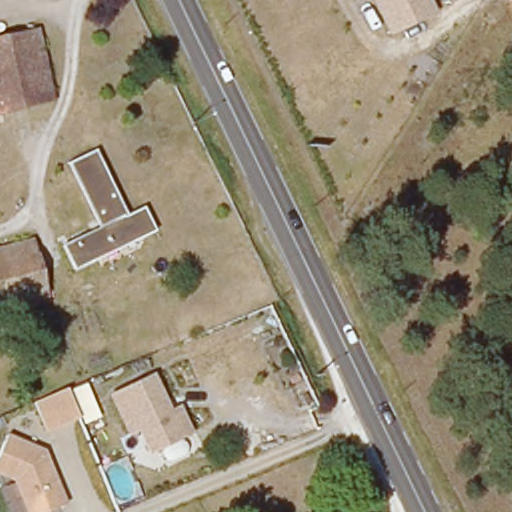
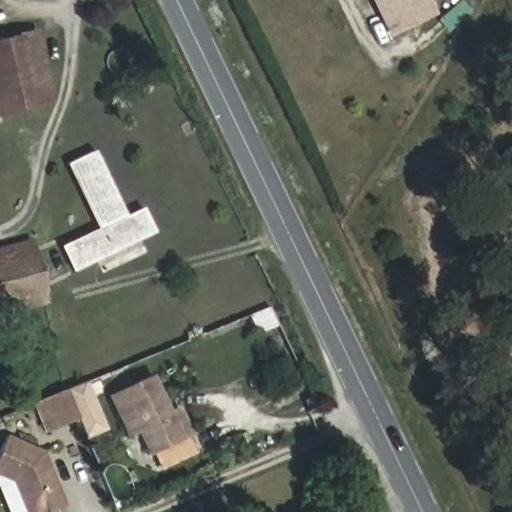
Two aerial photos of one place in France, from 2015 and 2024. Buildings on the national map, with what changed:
unchanged [(432,11),(387,29),(378,11),(382,9),(378,0),(426,0),(432,11)]
unchanged [(0,110),(0,34),(43,25),(57,98),(0,110)]
unchanged [(140,207),(148,225),(72,262),(64,242),(97,227),(67,158),(100,143),(124,204),(127,212),(140,207)]
unchanged [(0,308),(0,247),(17,243),(29,301),(0,308)]
unchanged [(172,408),(180,402),(195,433),(151,453),(139,431),(129,437),(110,394),(155,372),(172,408)]
unchanged [(69,388),(87,382),(102,418),(84,424),(81,415),(46,429),(34,403),(69,388)]
unchanged [(63,501),(37,512),(24,512),(10,480),(0,476),(0,441),(5,432),(40,447),(63,501)]

